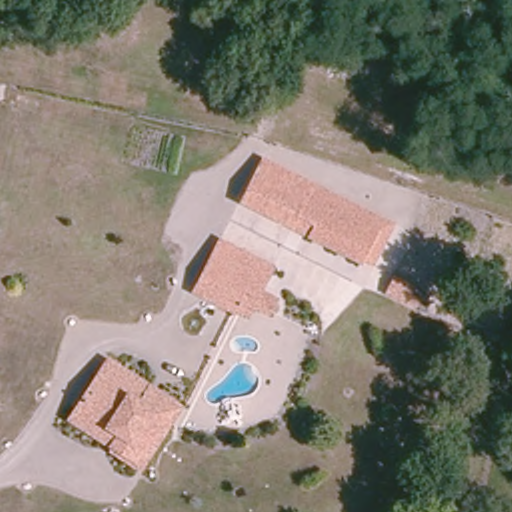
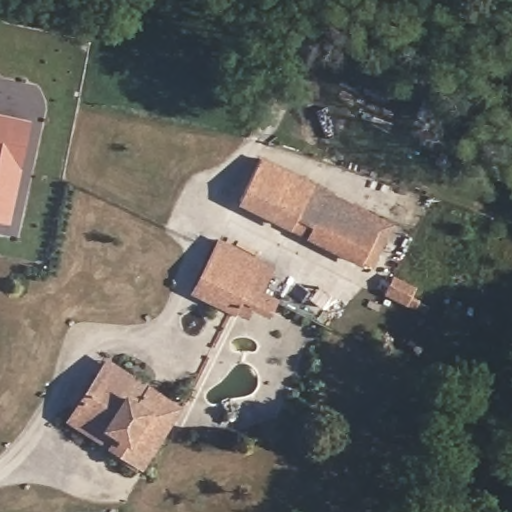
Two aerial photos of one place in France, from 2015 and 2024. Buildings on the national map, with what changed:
new [(9,224),(0,222),(0,113),(31,119),(9,224)]
unchanged [(391,225),(372,266),(361,261),(359,265),(238,202),(261,160),(391,225)]
unchanged [(238,311),(195,290),(216,249),(221,240),(276,267),(264,294),(281,303),(274,317),(256,308),(252,317),(238,311)]
unchanged [(394,276),(412,286),(410,294),(418,298),(412,309),(382,294),(394,276)]
unchanged [(76,415),(117,354),(150,375),(140,390),(176,414),(165,431),(138,472),(109,454),(67,427),(76,415)]

